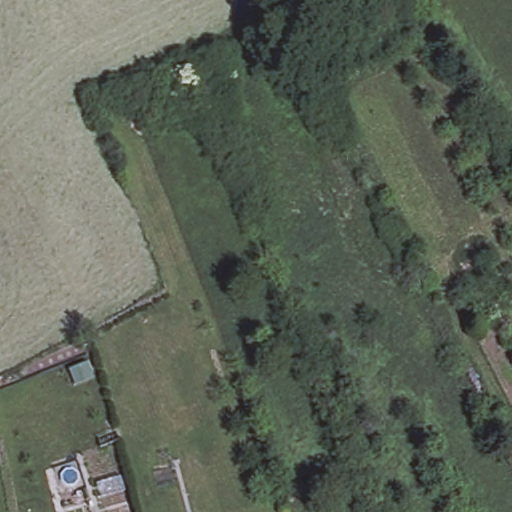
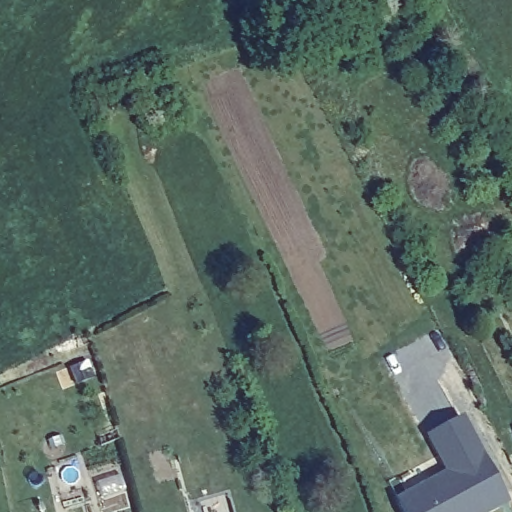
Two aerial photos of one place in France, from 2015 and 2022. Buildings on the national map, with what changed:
new [(392,500),(443,472),(425,437),(462,416),(485,458),(507,501),(487,512),(400,512),(392,500)]

